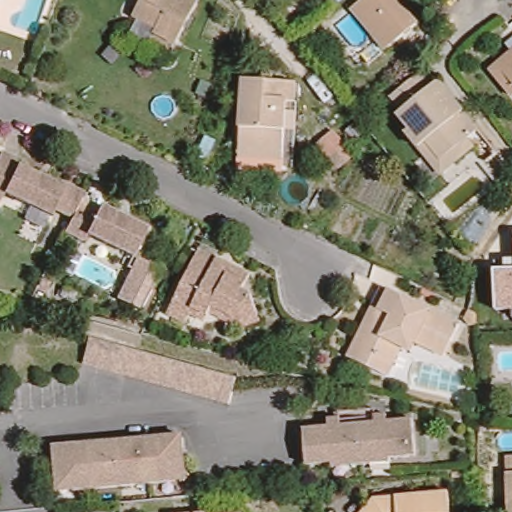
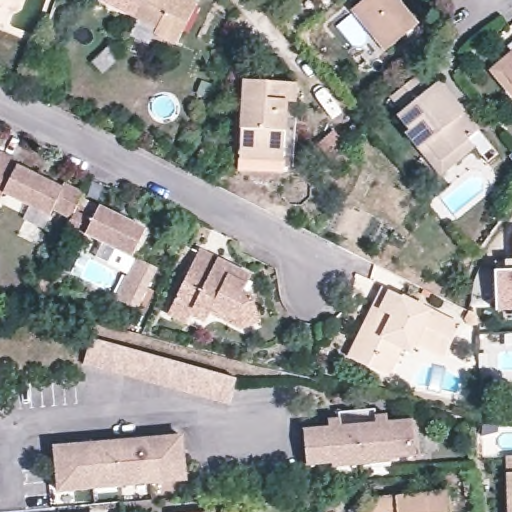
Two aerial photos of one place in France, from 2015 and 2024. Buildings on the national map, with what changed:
unchanged [(176,47),(156,36),(158,32),(134,19),(144,0),(183,0),(197,8),(176,47)]
unchanged [(405,7),(399,13),(417,34),(386,60),(352,17),(367,4),(364,0),(399,0),(405,7)]
unchanged [(496,71),(503,65),(512,56),(512,92),(496,71)]
unchanged [(431,176),(409,150),(411,148),(396,130),(400,127),(388,113),(393,109),(381,96),(410,73),(420,87),(428,81),(440,97),(452,111),(468,131),(458,138),(465,148),(431,176)]
unchanged [(289,109),(283,109),(276,172),(235,168),(243,80),(291,84),(289,109)]
unchanged [(66,185),(84,194),(78,208),(71,220),(55,212),(53,219),(5,195),(0,206),(0,205),(0,157),(2,153),(21,162),(19,166),(64,189),(66,185)]
unchanged [(78,208),(95,216),(100,208),(146,231),(133,260),(88,237),(85,245),(65,234),(71,220),(78,208)]
unchanged [(237,334),(207,318),(205,321),(191,314),(182,328),(165,319),(172,304),(196,255),(248,281),(241,296),(250,301),(255,319),(257,327),(237,334)]
unchanged [(496,312),(496,270),(505,269),(505,260),(512,259),(512,312),(496,312)]
unchanged [(341,364),(358,328),(364,315),(376,291),(440,322),(452,328),(437,359),(424,353),(399,340),(385,369),(378,381),(360,373),(341,364)]
unchanged [(79,370),(85,343),(231,381),(228,394),(225,407),(189,398),(79,370)]
unchanged [(63,399),(35,401),(35,385),(60,383),(63,399)]
unchanged [(330,467),(305,469),(301,432),(326,430),(326,422),(335,421),(335,415),(371,411),(373,418),(384,417),(385,425),(409,423),(413,460),(388,461),(389,466),(369,468),(349,470),(330,471),(330,467)]
unchanged [(51,447),(53,445),(178,434),(181,437),(183,463),(185,480),(166,482),(143,484),(127,485),(69,491),(56,492),(55,475),(51,447)]
unchanged [(507,512),(505,457),(512,457),(512,512),(507,512)]
unchanged [(447,488),(449,512),(360,512),(374,494),(447,488)]

